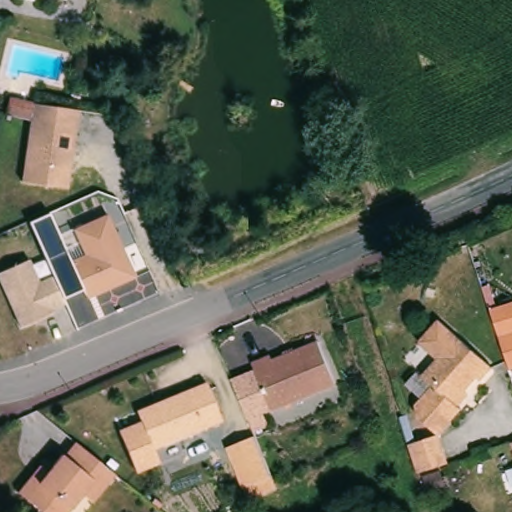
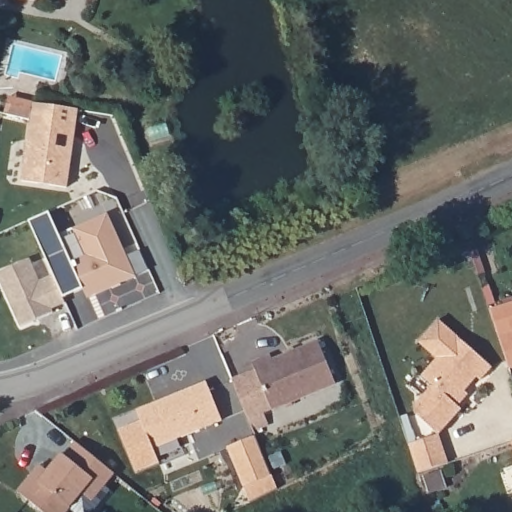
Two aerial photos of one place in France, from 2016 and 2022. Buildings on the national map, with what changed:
unchanged [(78,111),(66,189),(21,182),(29,119),(3,116),(7,95),(78,111)]
unchanged [(134,275),(85,298),(82,289),(63,297),(66,304),(50,311),(51,314),(19,327),(0,283),(0,271),(30,258),(38,279),(51,274),(28,221),(48,211),(70,260),(84,254),(73,227),(106,215),(134,275)]
unchanged [(512,301),(512,368),(509,368),(489,308),(512,301)]
unchanged [(413,416),(413,404),(429,385),(419,376),(433,360),(415,343),(435,321),(489,368),(477,382),(473,379),(461,392),(465,395),(454,407),(458,410),(435,435),(433,434),(442,461),(412,471),(402,443),(432,433),(413,416)]
unchanged [(334,385),(265,412),(268,425),(253,430),(232,377),(319,344),(334,385)]
unchanged [(220,420),(152,447),(158,465),(134,474),(116,428),(138,420),(135,408),(206,382),(220,420)]
unchanged [(273,483),(245,497),(222,442),(251,431),(273,483)]
unchanged [(67,512),(42,512),(16,491),(30,474),(39,464),(47,470),(61,452),(62,454),(74,440),(115,474),(102,489),(93,501),(83,493),(67,512)]
unchanged [(512,440),(512,442),(511,440),(512,440)]

